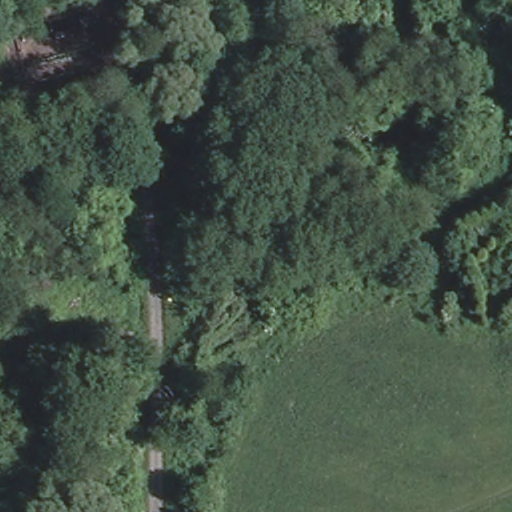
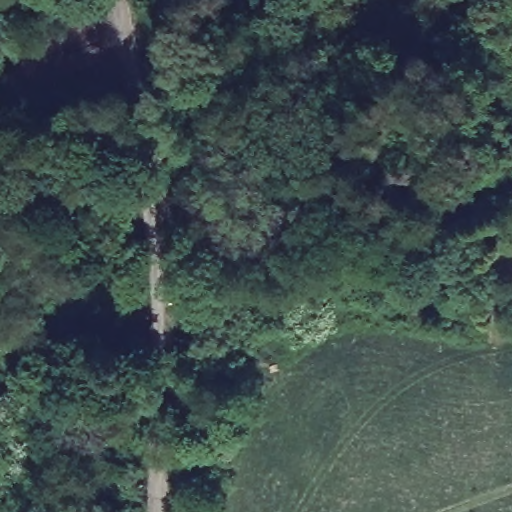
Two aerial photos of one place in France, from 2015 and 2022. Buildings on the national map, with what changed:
unchanged [(20,65),(12,28),(91,10),(98,45),(20,65)]

